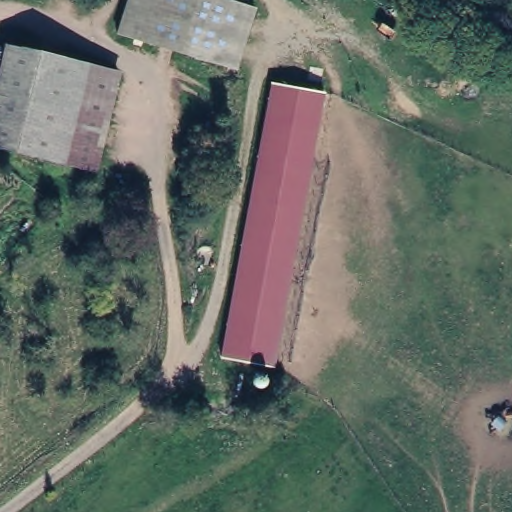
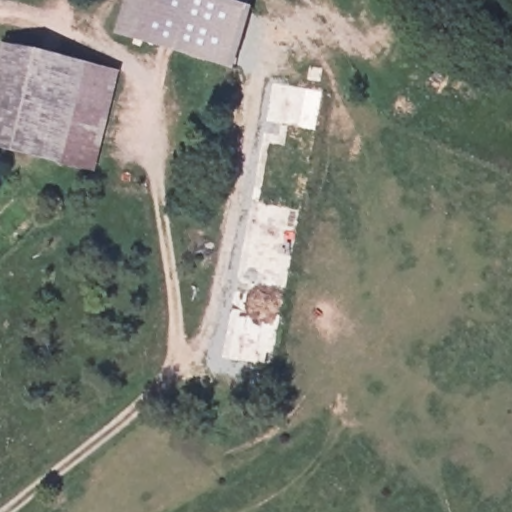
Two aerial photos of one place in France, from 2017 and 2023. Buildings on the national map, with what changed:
unchanged [(238,73),(119,36),(129,0),(229,0),(257,9),(238,73)]
unchanged [(117,61),(112,165),(79,162),(0,153),(0,51),(117,61)]
demolished [(223,357),(274,82),(326,92),(276,367),(223,357)]
unchanged [(254,378),(257,375),(262,374),(266,376),(269,380),(268,385),(266,389),(261,390),(255,388),(253,386),(254,378)]

